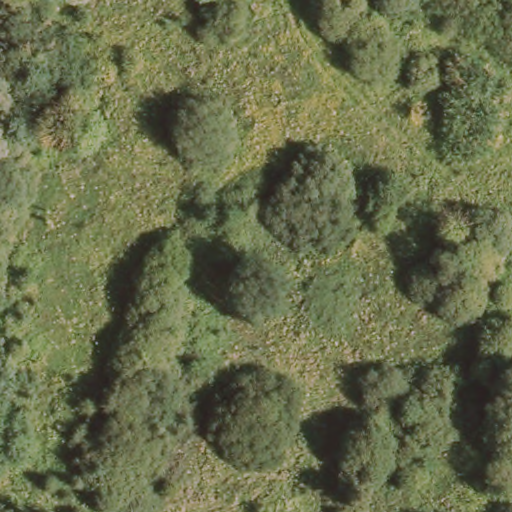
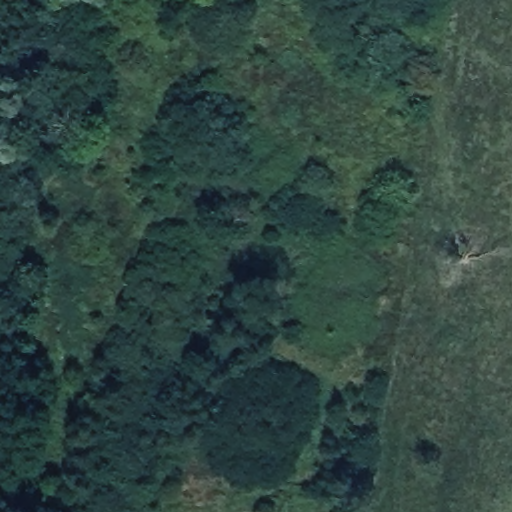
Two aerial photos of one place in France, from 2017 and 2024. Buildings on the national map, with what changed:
[]

